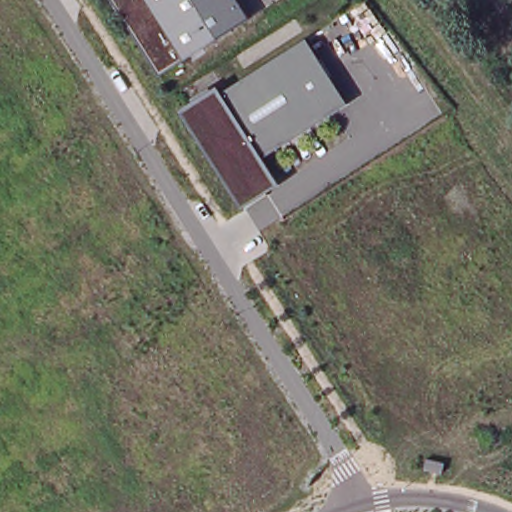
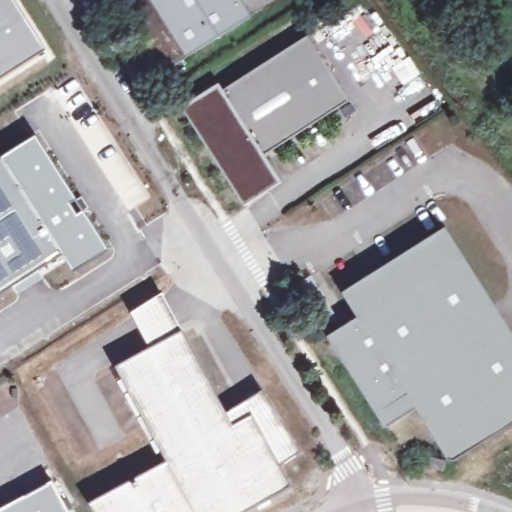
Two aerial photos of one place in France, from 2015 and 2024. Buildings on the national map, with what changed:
new [(0,82),(0,0),(16,0),(49,51),(0,82)]
unchanged [(252,19),(189,57),(159,73),(113,0),(240,0),(252,19)]
unchanged [(350,102),(263,157),(280,185),(244,207),(183,111),(220,88),(225,92),(308,40),(350,102)]
new [(1,155),(36,134),(85,208),(84,209),(109,249),(73,271),(60,251),(0,156),(1,155)]
new [(0,156),(60,251),(0,291),(0,153),(1,155),(0,156)]
new [(343,294),(443,229),(512,337),(512,426),(449,464),(416,410),(386,429),(329,337),(359,319),(343,294)]
new [(182,332),(225,414),(261,394),(299,453),(279,466),(288,486),(267,497),(271,505),(259,511),(255,504),(241,512),(94,512),(90,506),(161,466),(117,383),(122,380),(116,369),(150,351),(130,314),(161,294),(182,332)]
new [(68,512),(0,512),(0,508),(50,480),(68,512)]

